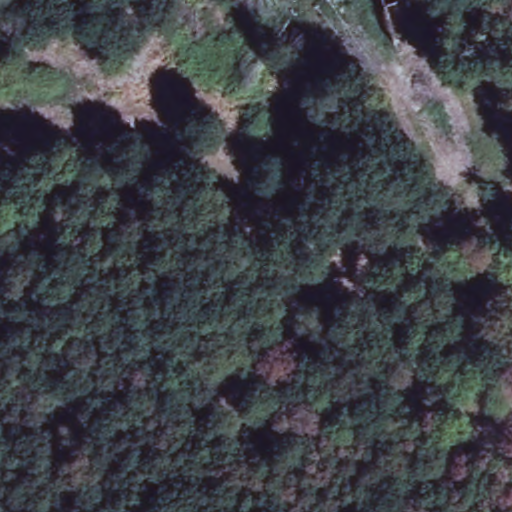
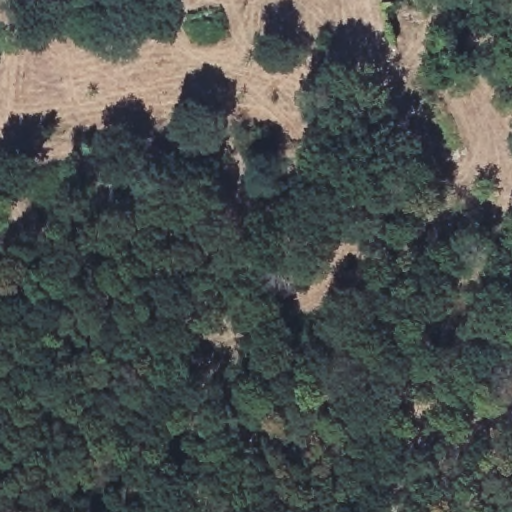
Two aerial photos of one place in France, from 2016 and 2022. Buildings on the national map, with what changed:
[]

